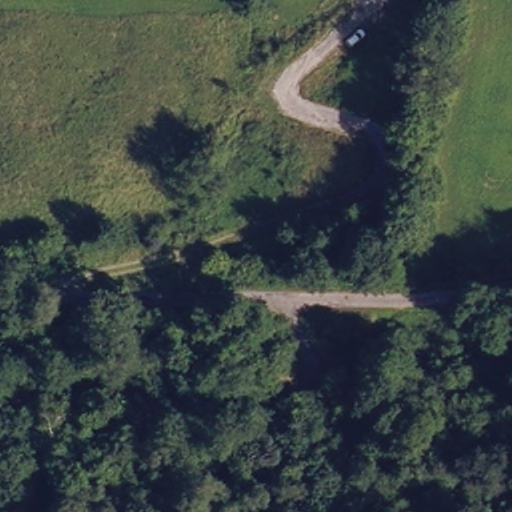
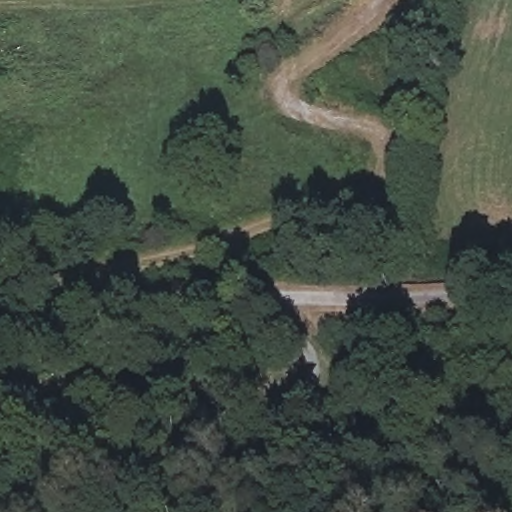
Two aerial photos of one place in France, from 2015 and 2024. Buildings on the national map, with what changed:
[]

